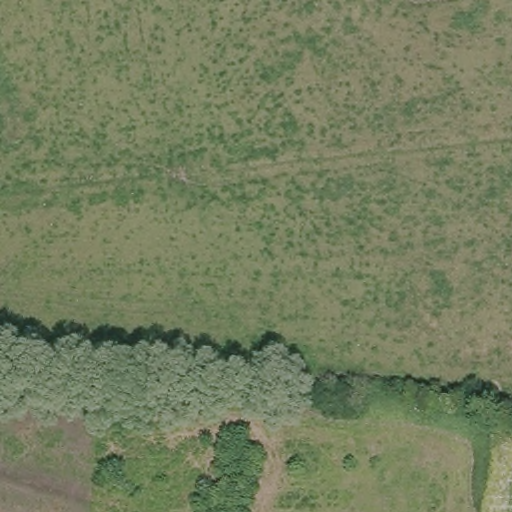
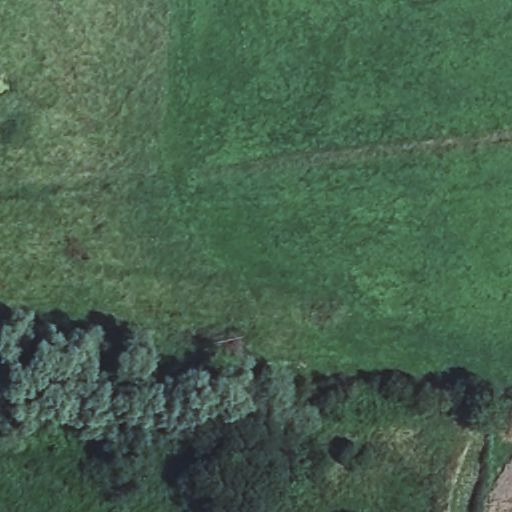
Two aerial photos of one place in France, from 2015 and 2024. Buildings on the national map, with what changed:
[]

